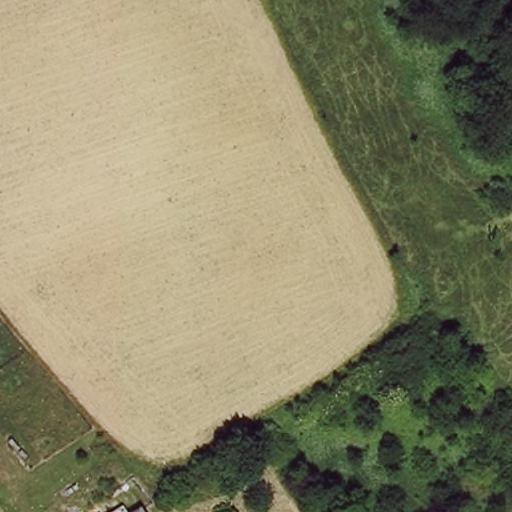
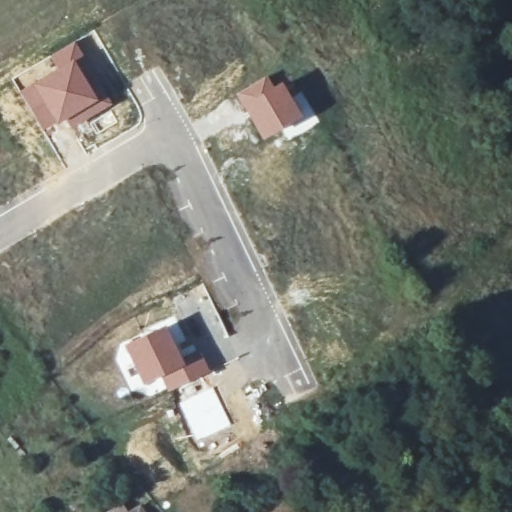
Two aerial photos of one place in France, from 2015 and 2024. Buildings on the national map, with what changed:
new [(75,39),(111,104),(71,129),(66,119),(43,132),(12,78),(75,39)]
new [(266,75),(274,86),(281,81),(304,119),(262,140),(234,93),(266,75)]
new [(210,372),(167,392),(160,378),(141,386),(134,375),(127,379),(118,356),(123,353),(120,346),(166,324),(188,361),(201,355),(210,372)]
new [(213,386),(231,425),(196,440),(179,402),(213,386)]
new [(128,512),(113,512),(123,505),(128,512)]
unchanged [(139,512),(138,512),(138,511),(139,512)]

